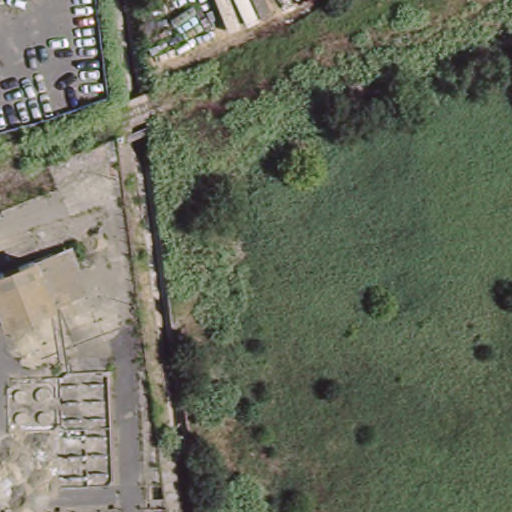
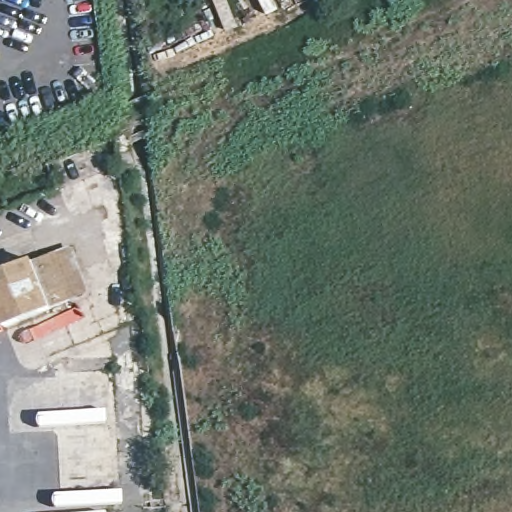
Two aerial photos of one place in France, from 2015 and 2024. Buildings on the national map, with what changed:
unchanged [(57,309),(11,325),(0,294),(0,276),(40,262),(57,309)]

